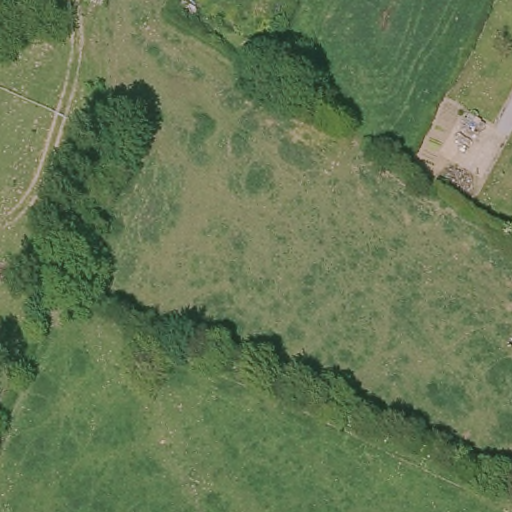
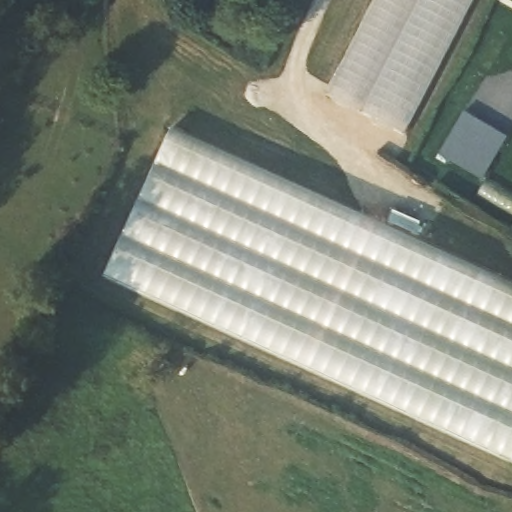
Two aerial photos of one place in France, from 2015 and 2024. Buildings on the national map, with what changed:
new [(472,0),(406,129),(397,131),(326,95),(374,0),(472,0)]
demolished [(90,56),(96,121),(80,122),(74,57),(90,56)]
new [(480,181),(439,156),(464,115),(505,139),(480,181)]
new [(103,280),(173,133),(512,286),(512,465),(103,280)]
demolished [(477,147),(467,165),(444,151),(454,134),(477,147)]

